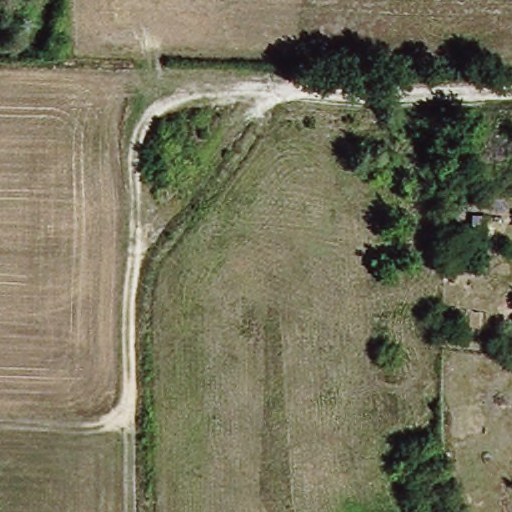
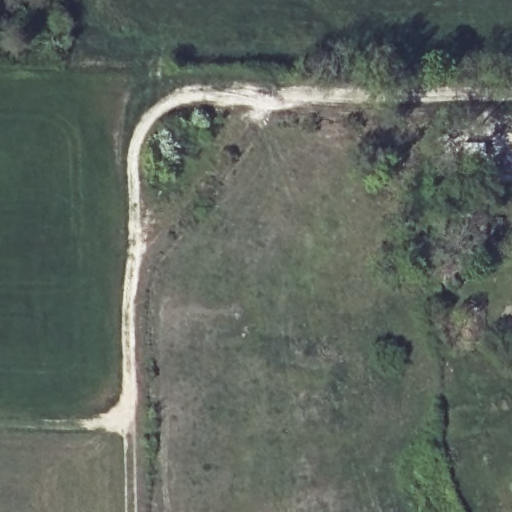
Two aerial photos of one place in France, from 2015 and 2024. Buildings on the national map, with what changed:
unchanged [(171,146),(171,166),(144,166),(145,147),(171,146)]

